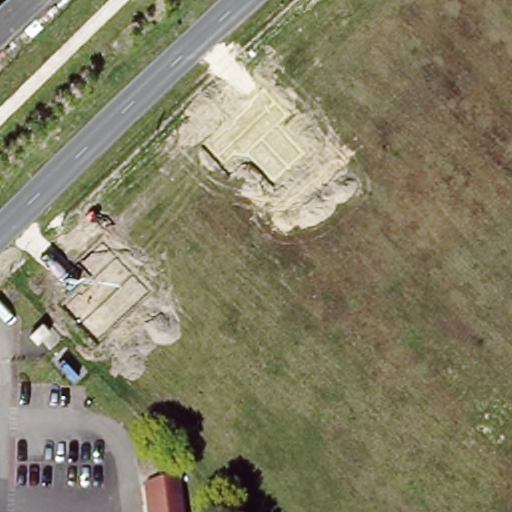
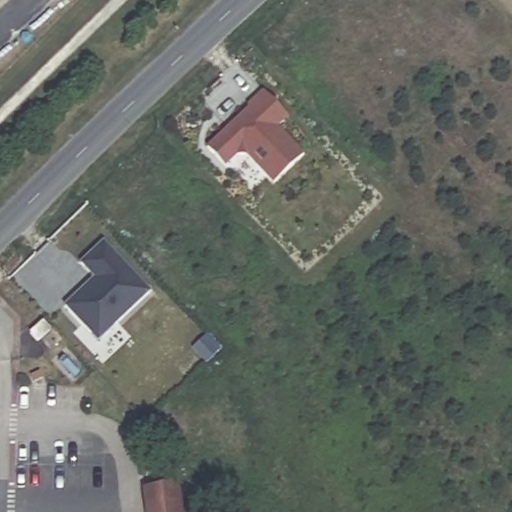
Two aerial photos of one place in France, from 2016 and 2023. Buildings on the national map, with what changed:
unchanged [(0,0),(3,0),(0,2),(0,0)]
new [(227,126),(229,129),(235,123),(232,120),(249,104),(247,102),(262,87),(287,114),(277,124),(304,153),(274,182),(247,154),(235,153),(225,164),(207,145),(227,126)]
new [(80,292),(82,295),(88,289),(86,286),(95,278),(80,263),(104,242),(150,292),(97,342),(65,307),(80,292)]
new [(207,334),(220,348),(205,362),(192,347),(207,334)]
unchanged [(180,483),(184,512),(146,512),(143,487),(180,483)]

